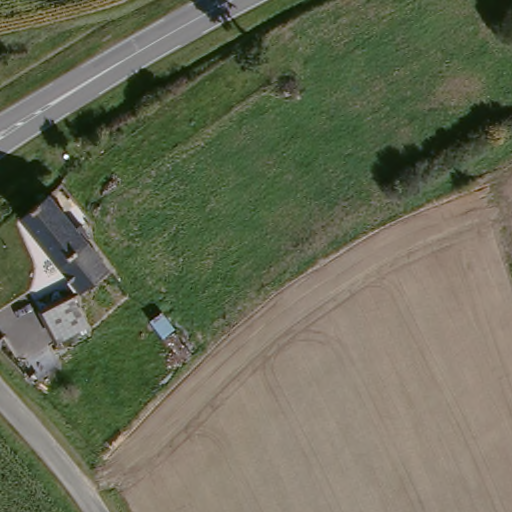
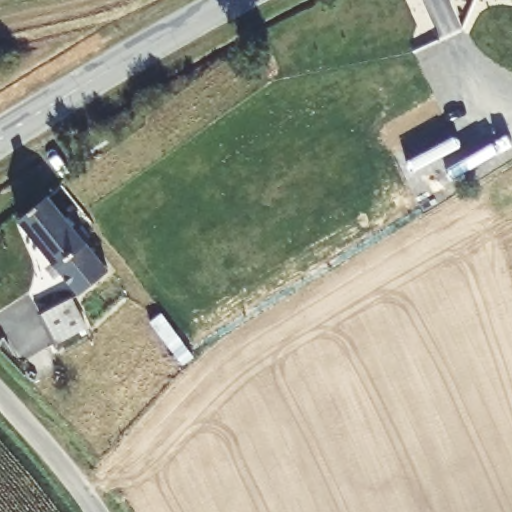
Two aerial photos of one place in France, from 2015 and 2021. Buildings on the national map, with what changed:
unchanged [(24,220),(54,196),(75,222),(46,246),(24,220)]
unchanged [(75,222),(105,259),(113,269),(83,294),(46,246),(75,222)]
unchanged [(75,298),(91,328),(59,346),(56,342),(41,316),(47,313),(75,298)]

